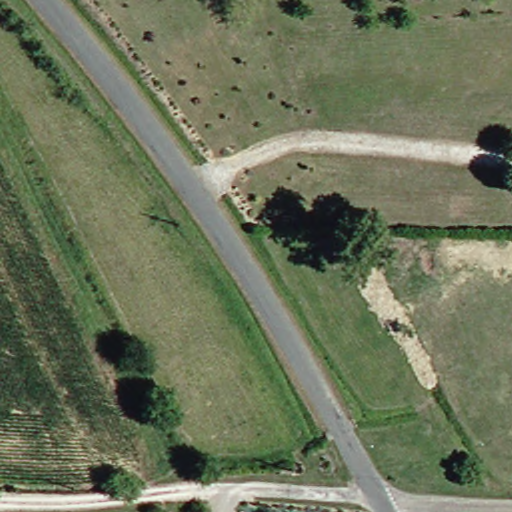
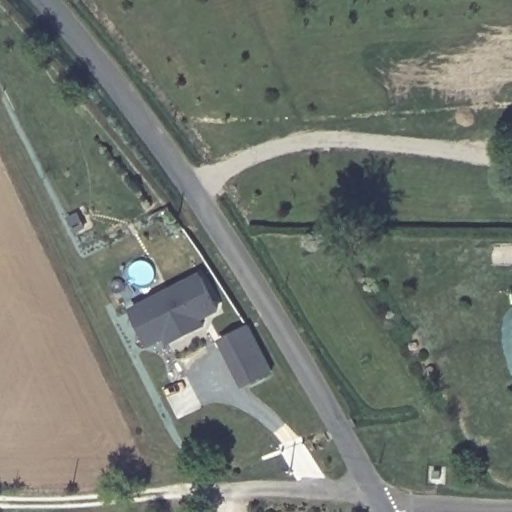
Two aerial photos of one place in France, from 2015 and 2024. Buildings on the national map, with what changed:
new [(167,347),(165,341),(147,350),(129,310),(200,273),(220,313),(204,321),(207,327),(167,347)]
new [(250,325),(274,373),(242,389),(219,342),(250,325)]

